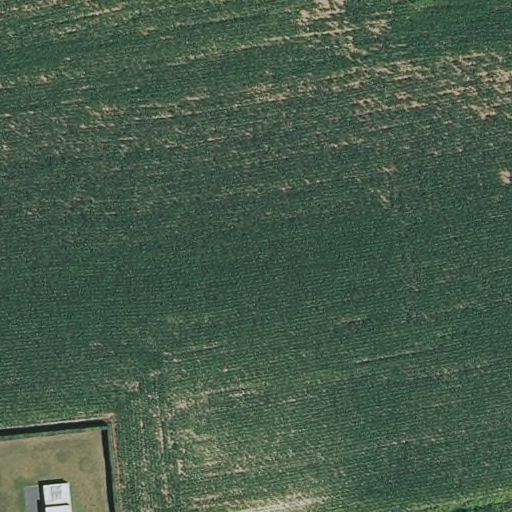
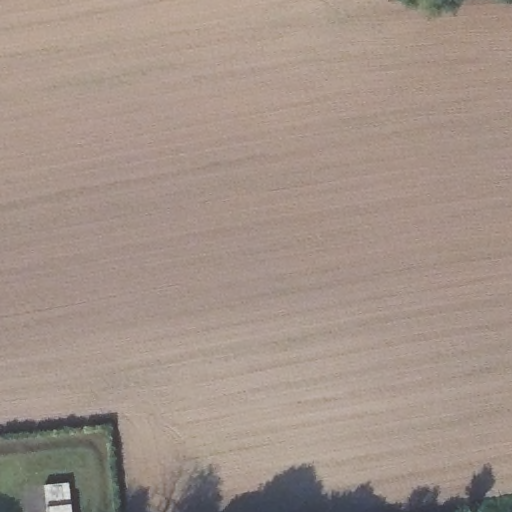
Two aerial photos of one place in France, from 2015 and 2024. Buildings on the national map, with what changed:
unchanged [(75,512),(50,512),(47,483),(72,482),(75,512)]

